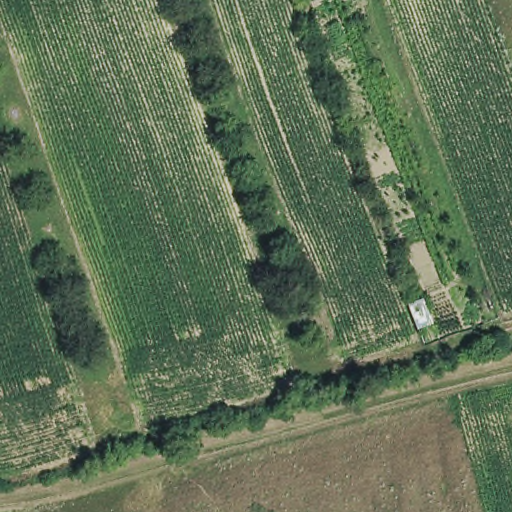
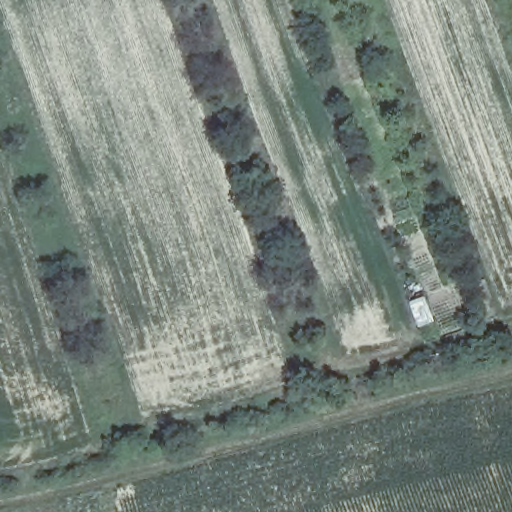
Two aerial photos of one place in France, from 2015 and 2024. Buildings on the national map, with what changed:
unchanged [(428,293),(437,320),(417,329),(408,301),(428,293)]

